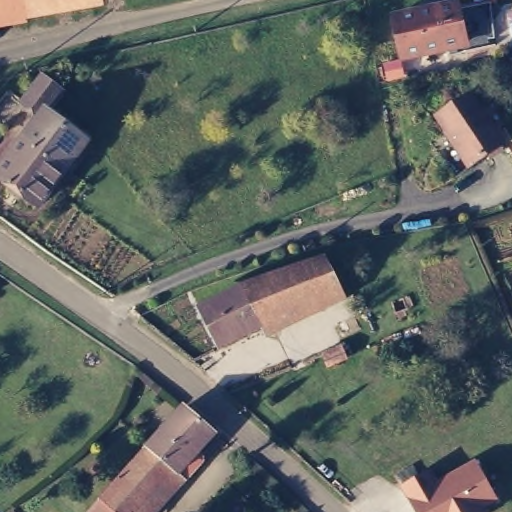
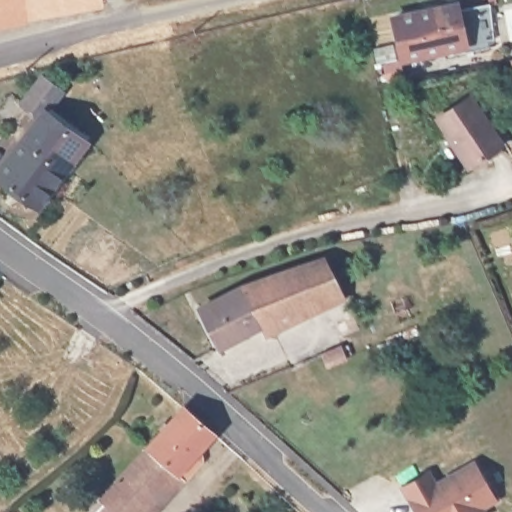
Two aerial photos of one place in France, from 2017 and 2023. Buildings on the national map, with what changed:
unchanged [(33,14),(0,19),(0,0),(32,0),(33,7),(33,14)]
unchanged [(104,0),(104,2),(90,5),(45,12),(33,14),(33,7),(32,0),(104,0)]
unchanged [(397,29),(396,22),(451,10),(457,10),(466,49),(429,56),(404,61),(397,29)]
unchanged [(28,128),(40,111),(23,100),(43,75),(61,89),(45,110),(84,139),(69,159),(28,128)]
unchanged [(498,144),(466,165),(433,116),(466,95),(498,144)]
unchanged [(14,184),(0,173),(0,165),(28,128),(69,159),(37,201),(23,190),(13,202),(4,195),(14,184)]
unchanged [(240,282),(328,263),(345,305),(320,313),(316,304),(265,320),(214,340),(198,299),(240,282)]
unchanged [(342,360),(346,374),(324,380),(321,366),(342,360)]
unchanged [(163,423),(168,416),(176,423),(186,412),(216,438),(179,477),(148,452),(170,430),(163,423)]
unchanged [(179,477),(146,512),(94,512),(93,511),(148,452),(179,477)]
unchanged [(499,499),(483,507),(485,512),(414,512),(399,486),(429,466),(435,480),(474,458),(499,499)]

